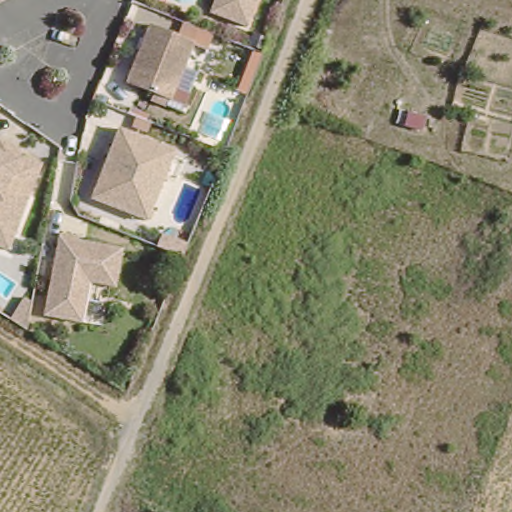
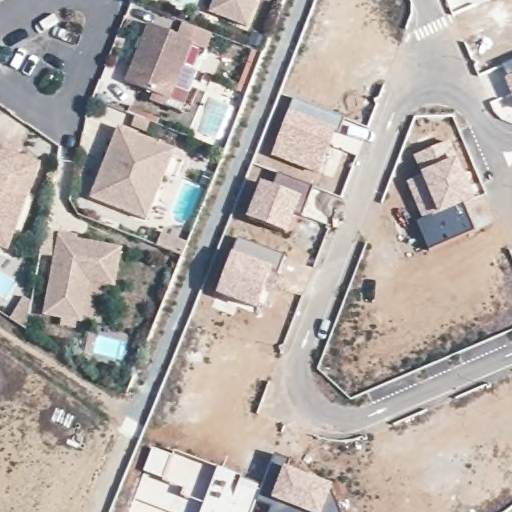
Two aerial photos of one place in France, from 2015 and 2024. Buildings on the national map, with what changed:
unchanged [(250,0),(241,21),(210,10),(205,7),(207,0),(250,0)]
unchanged [(120,78),(133,47),(137,35),(143,20),(187,38),(164,96),(120,78)]
new [(503,66),(512,62),(512,97),(504,78),(508,77),(503,66)]
new [(272,156),(293,100),(344,120),(340,131),(337,130),(320,174),(272,156)]
unchanged [(124,209),(86,194),(103,150),(107,142),(113,124),(170,146),(154,185),(142,216),(124,209)]
new [(405,181),(420,174),(412,156),(452,139),(475,200),(464,206),(473,230),(427,249),(416,221),(420,220),(405,181)]
unchanged [(20,150),(39,161),(7,249),(0,246),(0,144),(20,150)]
new [(260,181),(272,185),(305,199),(288,235),(245,217),(260,181)]
unchanged [(83,282),(76,322),(38,315),(55,233),(72,236),(72,240),(82,242),(116,249),(108,287),(83,282)]
new [(237,239),(283,256),(277,271),(274,270),(257,311),(215,295),(231,252),(237,239)]
new [(205,502),(180,495),(183,488),(162,481),(163,480),(143,472),(153,448),(172,455),(174,450),(262,486),(252,512),(201,512),(205,502)]
new [(282,466),(334,486),(331,495),(333,495),(340,512),(297,512),(269,500),(282,466)]

